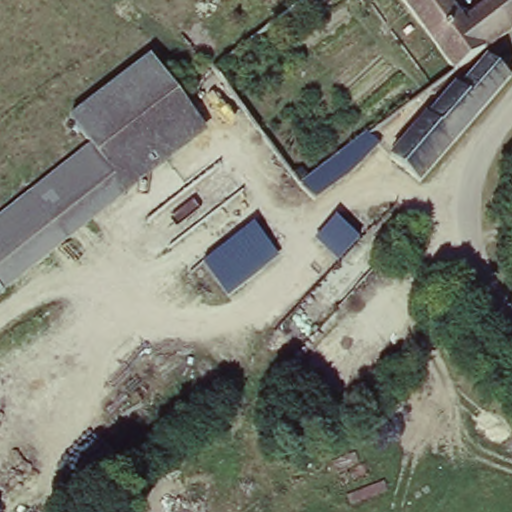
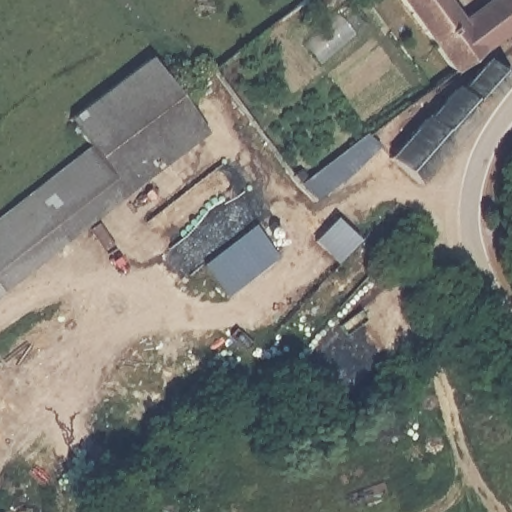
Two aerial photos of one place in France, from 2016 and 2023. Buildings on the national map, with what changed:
unchanged [(434,86),(427,77),(451,61),(404,0),(451,0),(465,18),(489,0),(512,0),(512,31),(434,86)]
unchanged [(0,213),(89,145),(69,120),(148,57),(208,132),(1,294),(0,293),(0,213)]
unchanged [(392,158),(427,115),(430,117),(458,86),(463,90),(491,60),(510,78),(416,182),(392,158)]
unchanged [(296,164),(308,178),(369,133),(378,145),(356,170),(314,198),(299,185),(288,170),(296,164)]
unchanged [(226,294),(205,264),(254,226),(276,255),(226,294)]
unchanged [(0,295),(0,293),(1,294),(0,295)]

